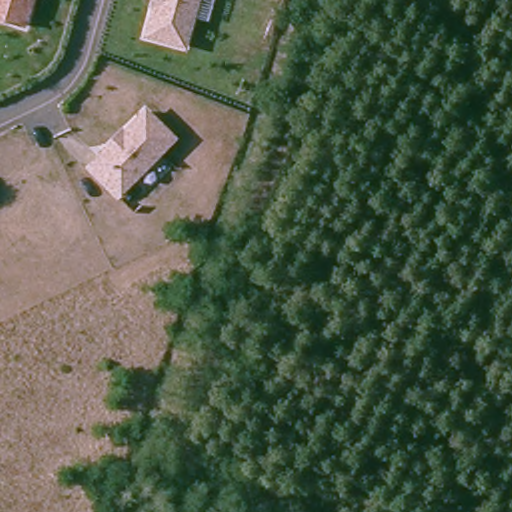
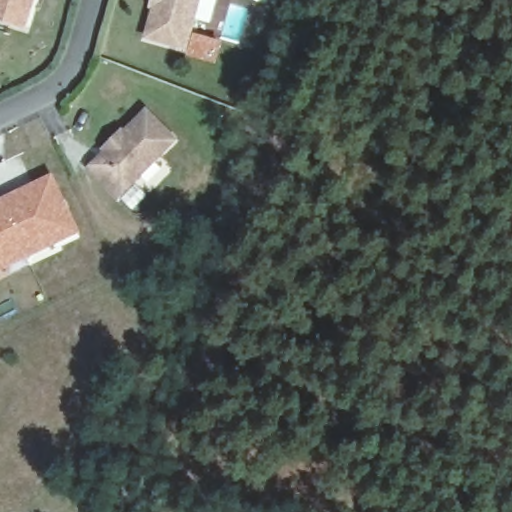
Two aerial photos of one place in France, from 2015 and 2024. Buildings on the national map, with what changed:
unchanged [(0,22),(0,0),(33,0),(23,30),(0,22)]
unchanged [(144,38),(155,0),(195,0),(180,49),(144,38)]
unchanged [(117,195),(90,168),(147,112),(174,140),(117,195)]
new [(52,172),(81,234),(0,273),(0,197),(52,172)]

